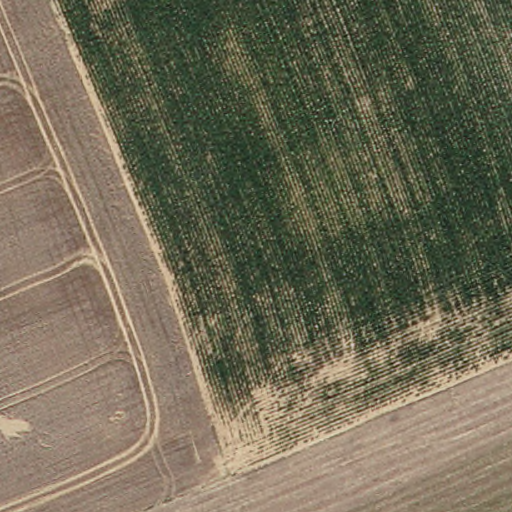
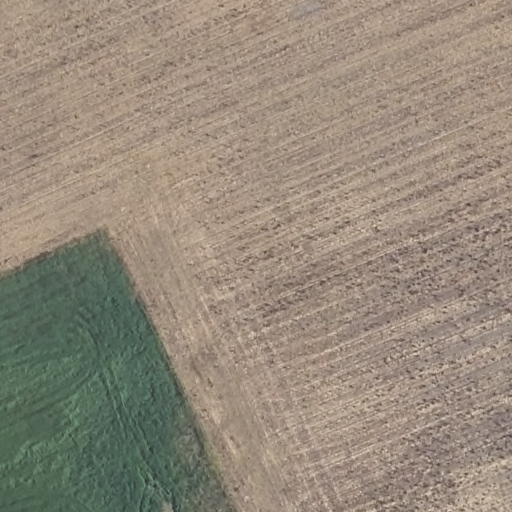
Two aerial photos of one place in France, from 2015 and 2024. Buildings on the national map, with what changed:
[]

